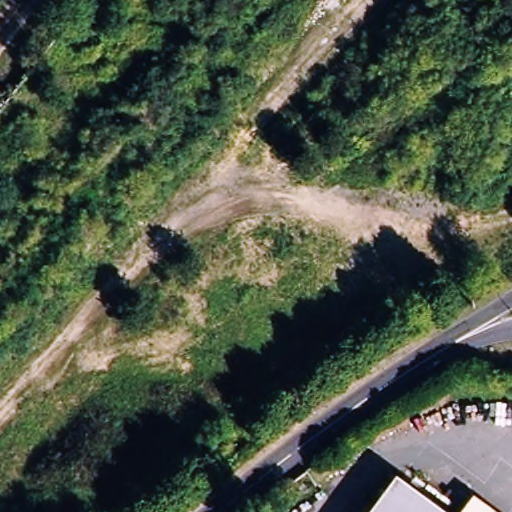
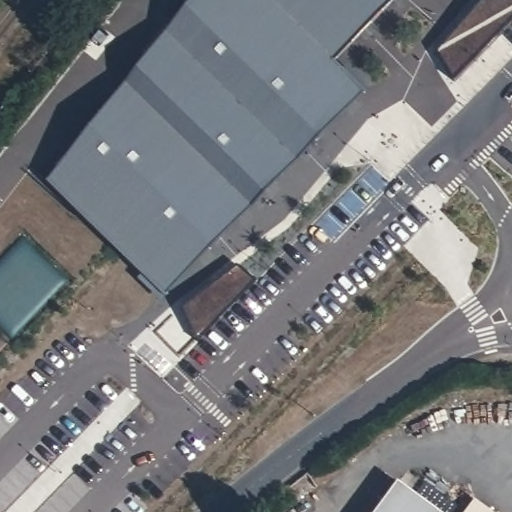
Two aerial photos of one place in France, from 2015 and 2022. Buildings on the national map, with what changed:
new [(332,60),(362,91),(166,294),(47,180),(190,0),(390,0),(332,60)]
new [(434,53),(472,0),(512,0),(512,22),(452,83),(434,53)]
new [(235,256),(256,273),(196,334),(177,299),(235,256)]
unchanged [(440,512),(366,512),(392,476),(440,512)]
new [(490,512),(456,512),(467,496),(490,512)]

